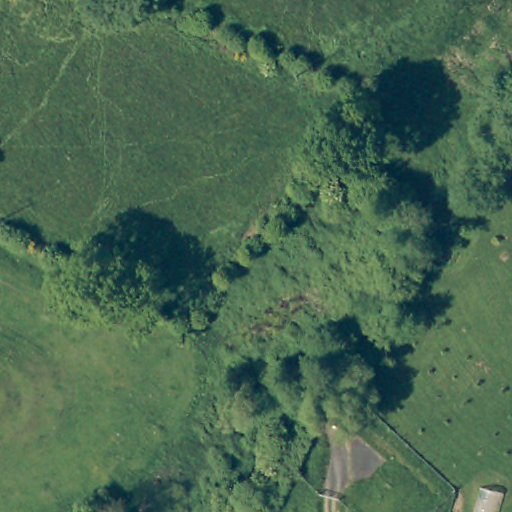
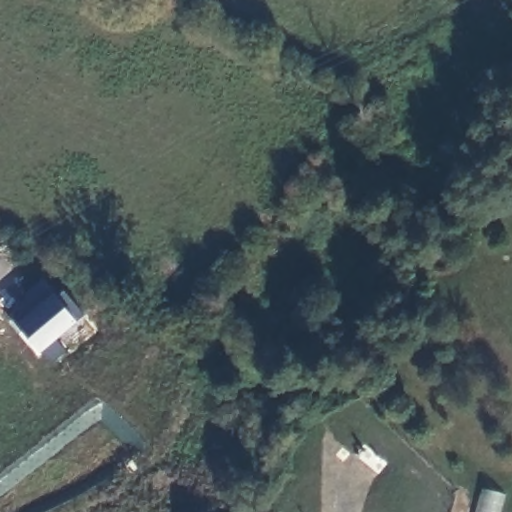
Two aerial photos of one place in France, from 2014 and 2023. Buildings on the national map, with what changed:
new [(32,296),(26,289),(41,276),(55,292),(62,287),(83,311),(55,335),(65,348),(53,358),(40,348),(12,314),(32,296)]

